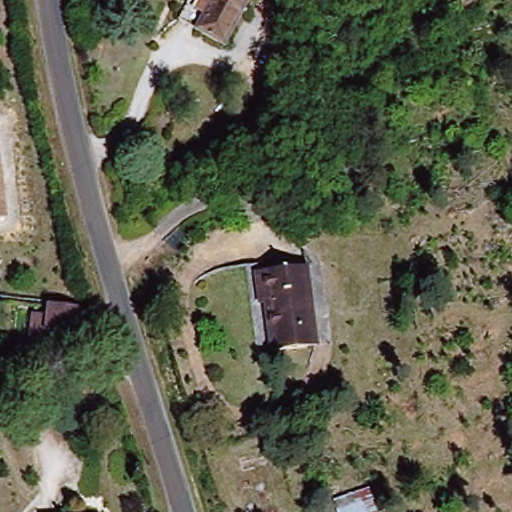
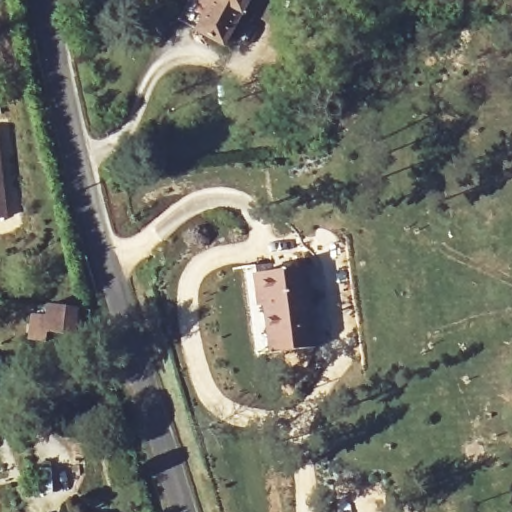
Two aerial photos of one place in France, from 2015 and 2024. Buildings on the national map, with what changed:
unchanged [(228,50),(185,24),(200,0),(258,0),(228,50)]
unchanged [(0,219),(0,135),(9,218),(0,219)]
unchanged [(318,274),(320,326),(322,354),(266,357),(257,273),(284,271),(285,277),(307,275),(318,274)]
unchanged [(69,315),(65,342),(37,338),(41,311),(69,315)]

